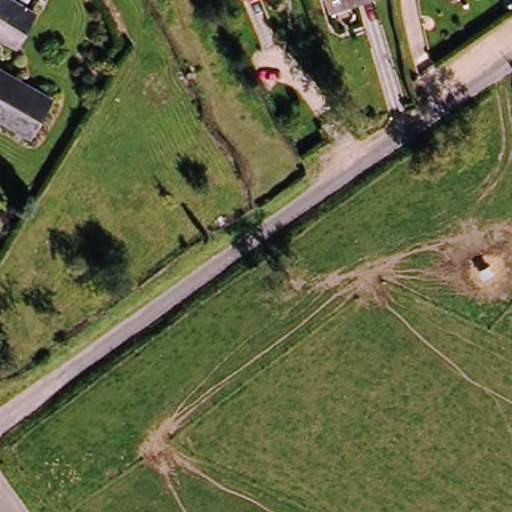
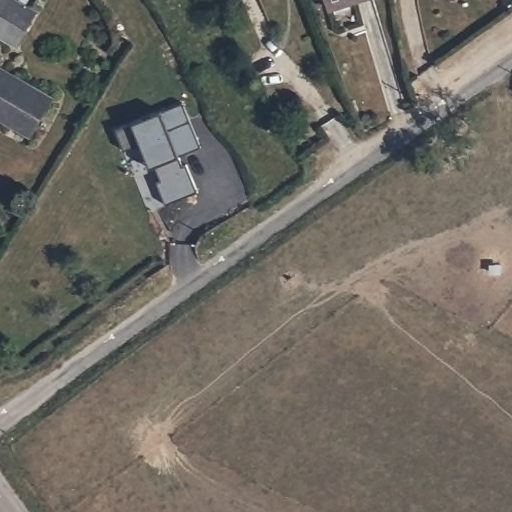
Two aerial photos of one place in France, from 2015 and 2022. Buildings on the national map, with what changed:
unchanged [(35,7),(15,39),(0,30),(0,31),(0,0),(24,0),(35,7)]
unchanged [(330,9),(327,0),(359,0),(330,9)]
unchanged [(53,94),(32,130),(0,112),(0,63),(53,94)]
new [(190,101),(207,146),(185,154),(188,164),(192,162),(202,191),(170,202),(161,180),(165,177),(151,139),(130,147),(122,126),(190,101)]

